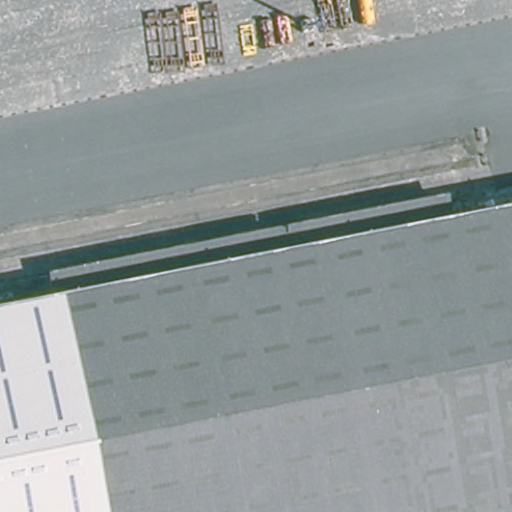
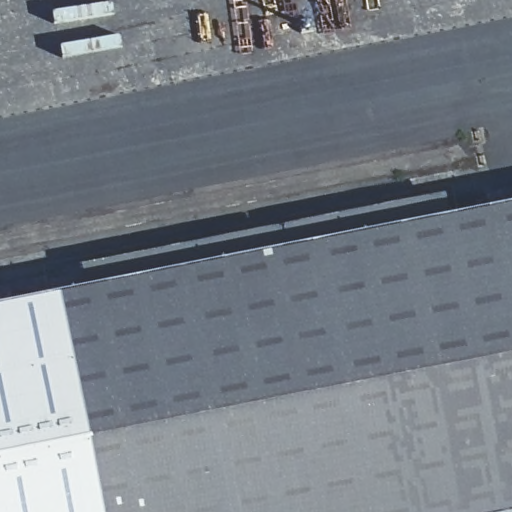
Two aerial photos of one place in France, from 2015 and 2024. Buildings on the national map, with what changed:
unchanged [(512,191),(512,214),(0,314),(0,291),(512,191)]
unchanged [(512,512),(0,512),(0,314),(512,214),(512,512)]

